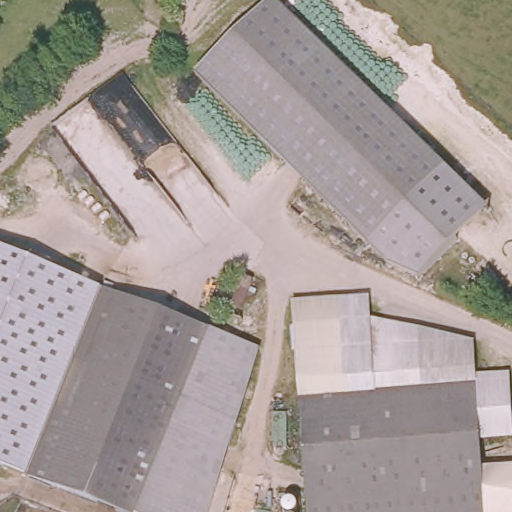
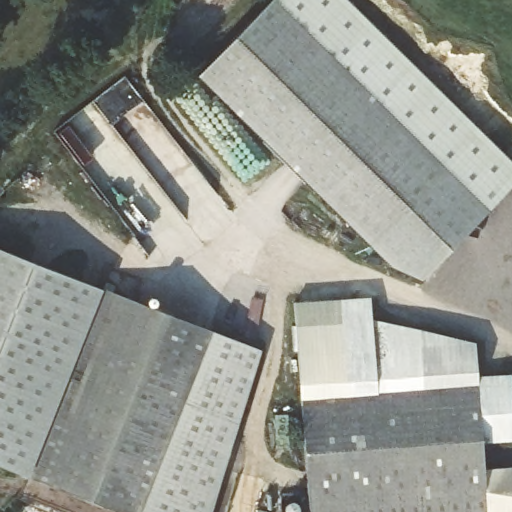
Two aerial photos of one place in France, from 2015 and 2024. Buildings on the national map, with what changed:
unchanged [(370,248),(195,77),(272,0),(276,0),(449,167),(370,248)]
new [(488,209),(449,167),(276,0),(348,0),(512,161),(512,187),(488,209)]
unchanged [(492,212),(420,286),(397,273),(370,248),(449,167),(492,212)]
unchanged [(29,477),(0,466),(0,249),(102,287),(29,477)]
unchanged [(102,287),(260,351),(211,512),(116,512),(29,477),(102,287)]
unchanged [(483,467),(486,506),(486,512),(309,512),(293,305),(370,301),(370,326),(472,342),(475,372),(480,436),(483,467)]
unchanged [(475,372),(506,371),(510,434),(480,436),(475,372)]
unchanged [(512,469),(512,512),(486,512),(486,506),(483,472),(512,469)]

